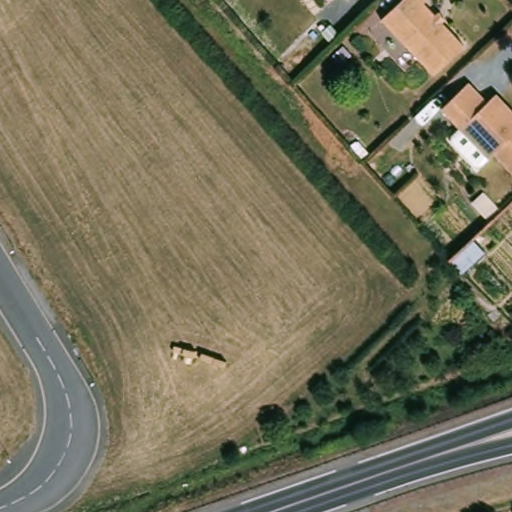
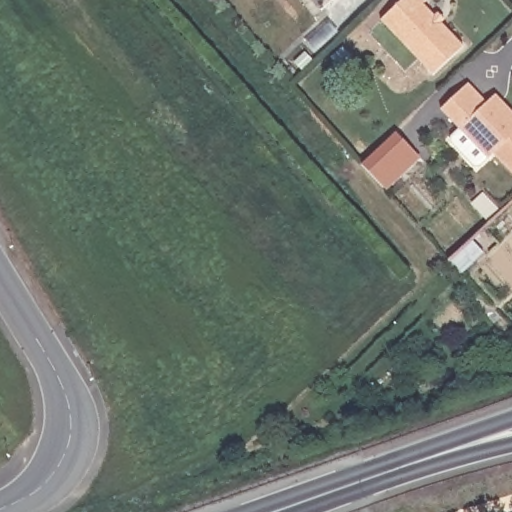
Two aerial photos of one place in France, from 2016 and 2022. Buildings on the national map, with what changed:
unchanged [(384,17),(402,0),(427,0),(426,1),(438,14),(442,10),(448,17),(444,21),(466,44),(436,71),(384,17)]
unchanged [(497,151),(491,157),(445,107),(473,82),(490,101),(495,97),(499,93),(512,106),(512,167),(497,151)]
new [(359,165),(396,131),(420,157),(385,191),(359,165)]
unchanged [(473,202),(484,192),(501,211),(494,217),(490,221),(473,202)]

